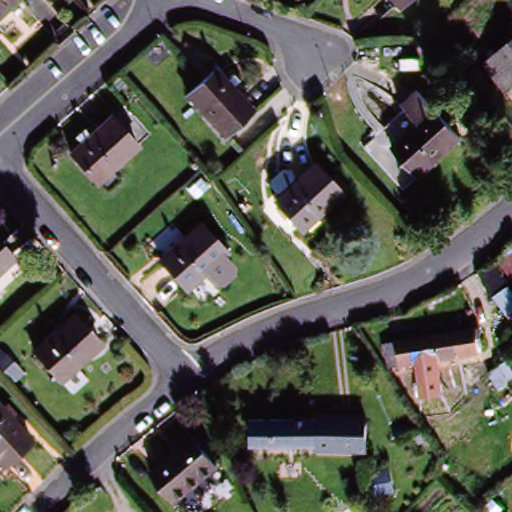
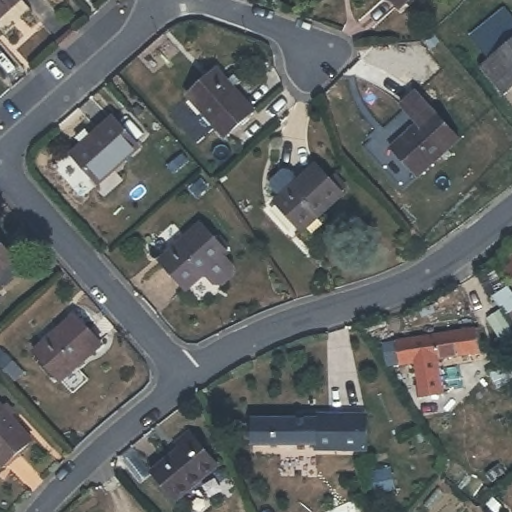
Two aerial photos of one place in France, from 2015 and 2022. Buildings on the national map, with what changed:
unchanged [(16,0),(0,15),(0,0),(16,0)]
unchanged [(390,0),(415,0),(405,11),(390,0)]
unchanged [(512,86),(498,99),(475,73),(512,39),(512,86)]
unchanged [(214,72),(227,86),(235,79),(245,89),(235,98),(251,115),(223,139),(188,97),(214,72)]
unchanged [(433,110),(460,140),(412,180),(387,152),(433,110)]
unchanged [(75,138),(84,130),(90,137),(111,118),(137,148),(95,185),(68,155),(80,145),(75,138)]
unchanged [(317,166),(341,197),(300,231),(275,200),(317,166)]
unchanged [(225,275),(212,285),(205,285),(195,273),(175,290),(153,263),(194,228),(207,242),(211,239),(219,248),(215,251),(217,255),(215,256),(225,268),(225,275)]
unchanged [(15,256),(0,268),(0,239),(15,256)]
unchanged [(512,246),(512,283),(495,262),(512,246)]
unchanged [(512,295),(512,313),(505,318),(492,301),(488,303),(477,274),(492,264),(507,288),(512,295)]
unchanged [(75,320),(100,348),(62,381),(38,352),(75,320)]
unchanged [(390,347),(487,325),(492,350),(395,373),(390,347)]
unchanged [(10,346),(29,371),(19,380),(0,356),(0,355),(10,346)]
unchanged [(30,436),(0,462),(0,402),(30,436)]
unchanged [(302,418),(302,415),(353,410),(357,444),(305,449),(305,444),(242,450),(240,425),(302,418)]
unchanged [(172,463),(165,456),(183,440),(215,472),(172,510),(148,485),(172,463)]

